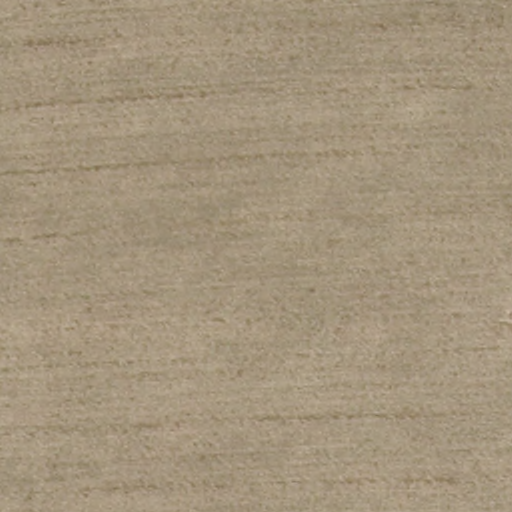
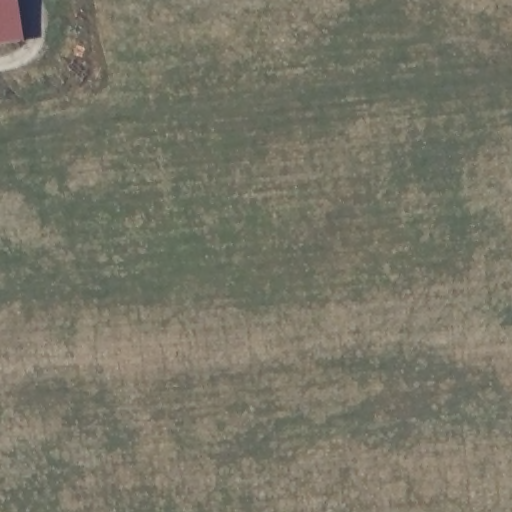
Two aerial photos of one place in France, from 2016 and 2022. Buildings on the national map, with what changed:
new [(0,44),(0,0),(13,0),(19,41),(0,44)]

